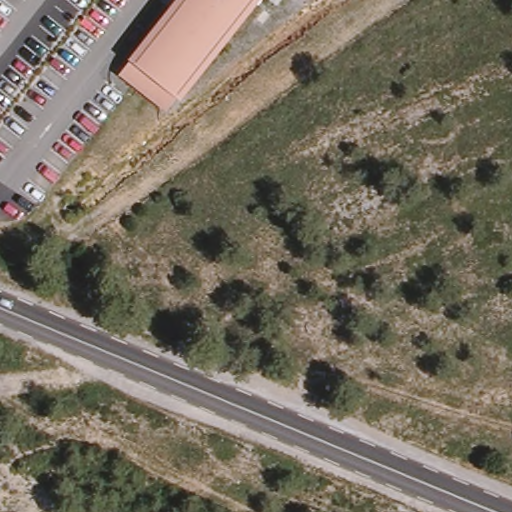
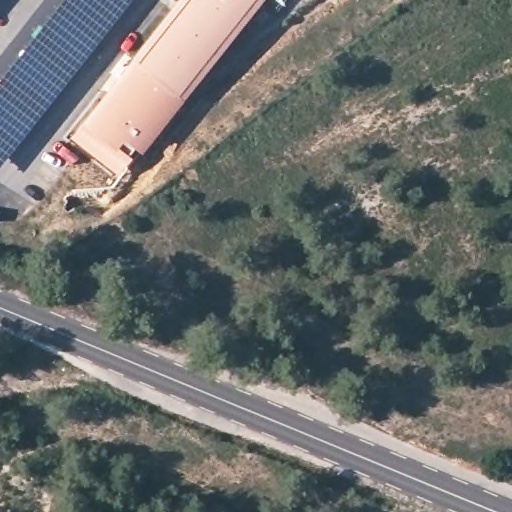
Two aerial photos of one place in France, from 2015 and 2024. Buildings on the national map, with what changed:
new [(129,0),(0,165),(0,73),(57,0),(129,0)]
unchanged [(117,75),(176,0),(260,0),(171,114),(117,75)]
new [(171,114),(139,151),(132,145),(127,153),(131,156),(117,174),(68,135),(79,119),(117,75),(171,114)]

